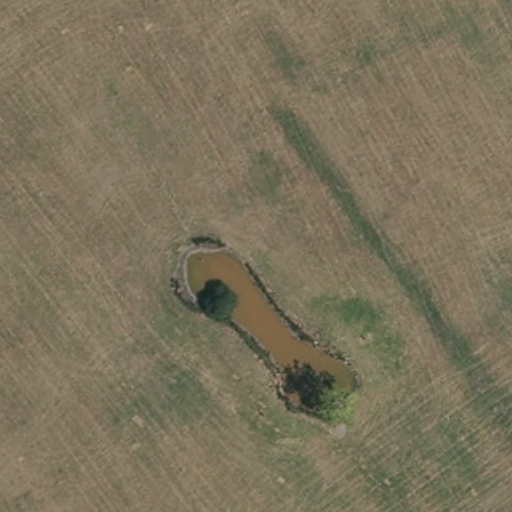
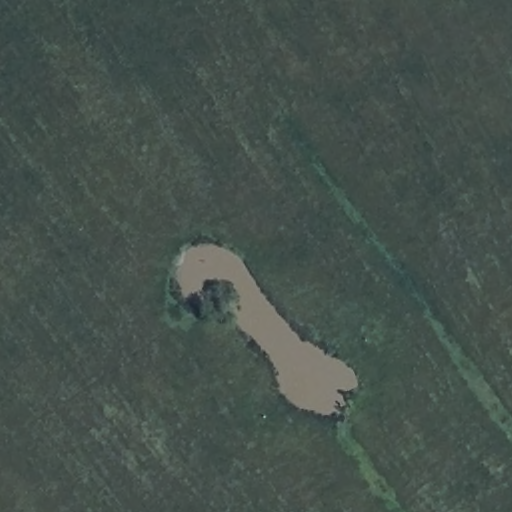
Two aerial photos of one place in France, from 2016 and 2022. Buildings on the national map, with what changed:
[]

